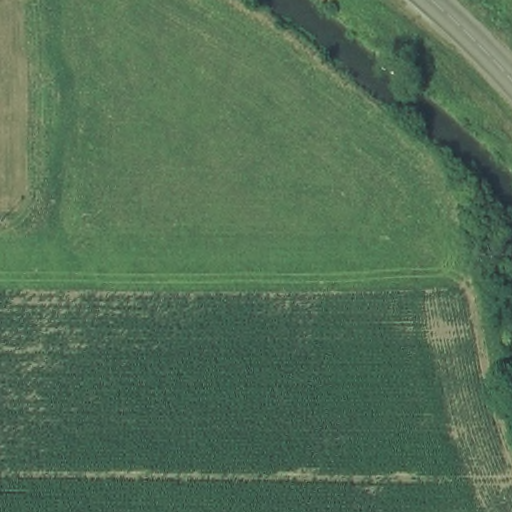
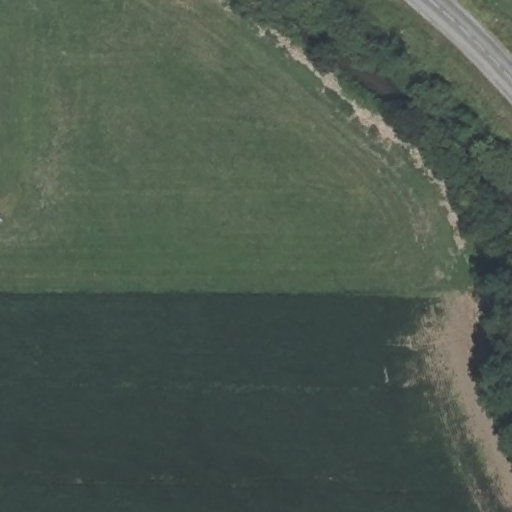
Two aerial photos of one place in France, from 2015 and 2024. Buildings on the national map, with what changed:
[]

